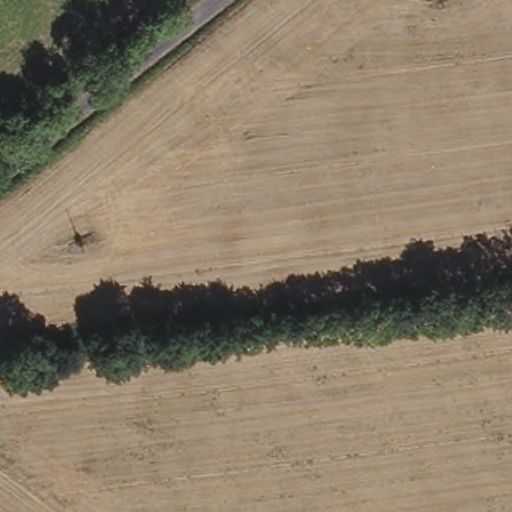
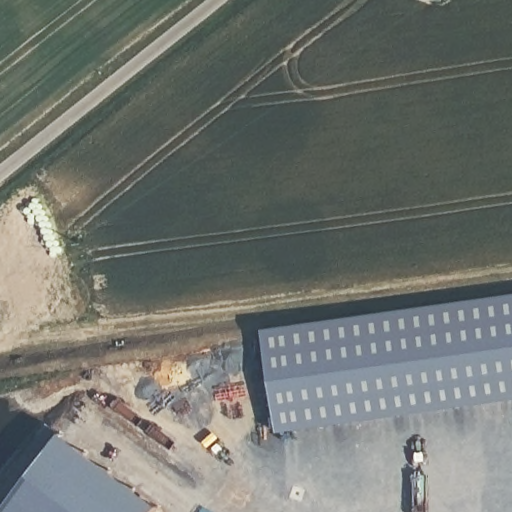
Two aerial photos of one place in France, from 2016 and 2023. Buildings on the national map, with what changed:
new [(512,406),(268,442),(252,341),(512,302),(512,406)]
new [(52,443),(148,512),(0,512),(0,510),(52,443)]

